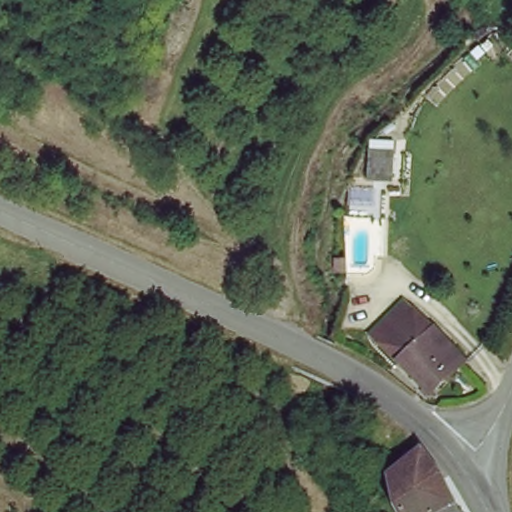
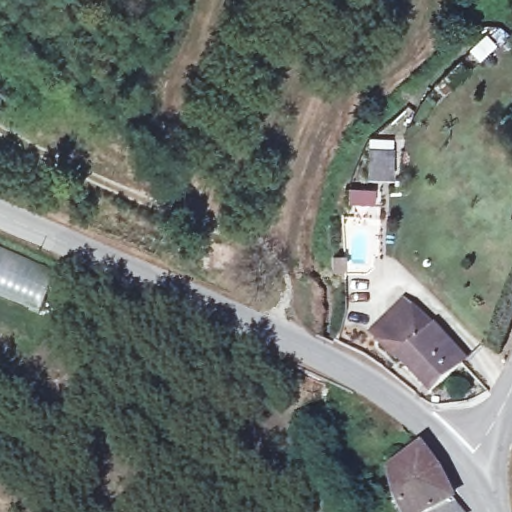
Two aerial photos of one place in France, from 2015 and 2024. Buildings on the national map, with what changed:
new [(59,274),(40,316),(0,298),(0,249),(59,274)]
unchanged [(390,318),(405,304),(452,350),(464,361),(433,391),(398,361),(381,346),(398,328),(398,327),(390,318)]
unchanged [(428,444),(439,452),(465,512),(403,512),(385,461),(428,444)]

